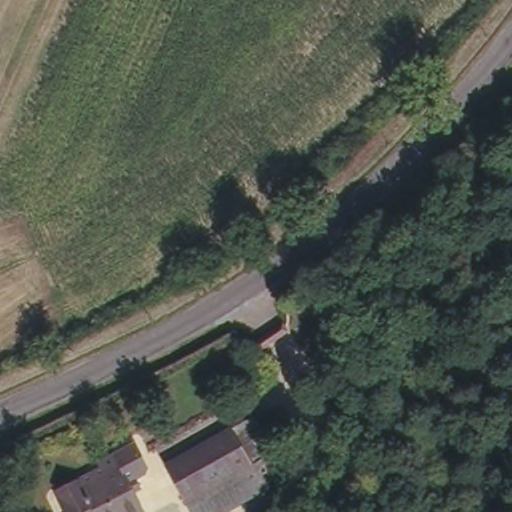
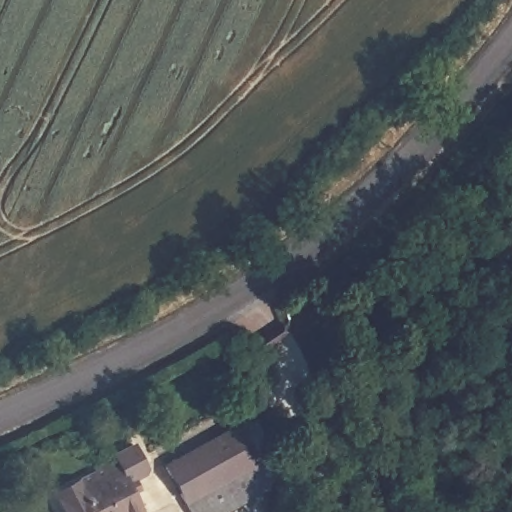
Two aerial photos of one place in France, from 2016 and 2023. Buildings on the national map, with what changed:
unchanged [(256,414),(291,475),(220,512),(192,512),(164,466),(256,414)]
unchanged [(124,461),(143,507),(133,512),(67,512),(57,491),(124,461)]

